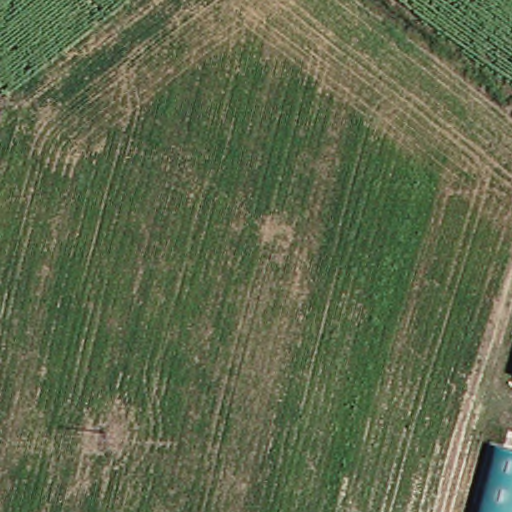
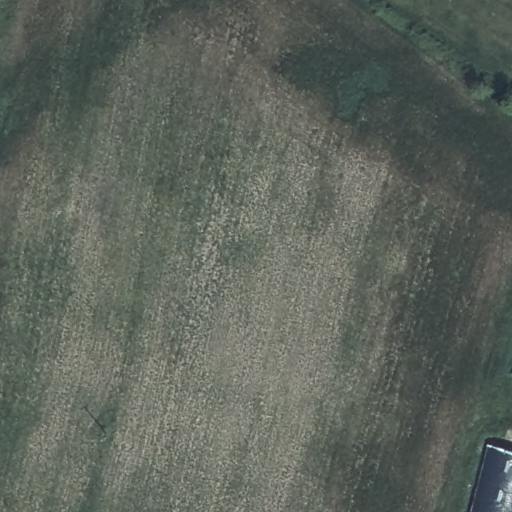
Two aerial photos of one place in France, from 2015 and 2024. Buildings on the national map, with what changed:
unchanged [(512,377),(511,377),(512,373),(512,377)]
unchanged [(512,512),(466,512),(482,447),(512,454),(512,512)]

